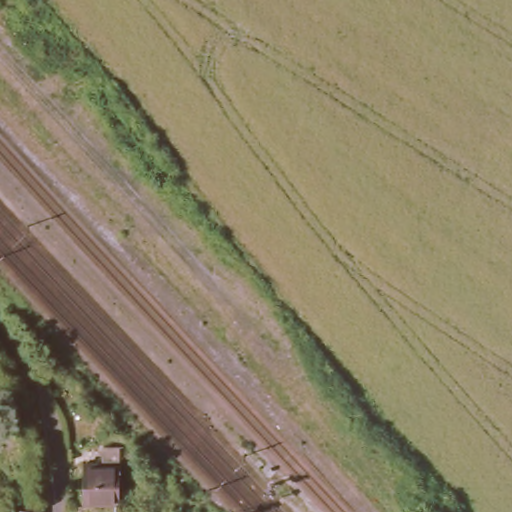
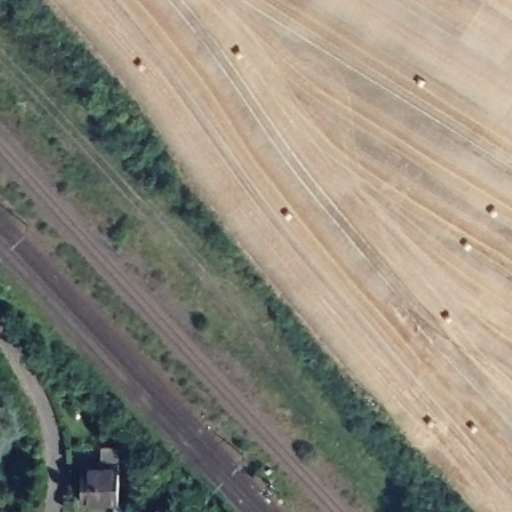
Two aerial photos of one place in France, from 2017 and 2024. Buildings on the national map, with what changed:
unchanged [(123,465),(123,503),(85,504),(84,465),(123,465)]
unchanged [(39,508),(39,512),(20,512),(20,506),(39,508)]

